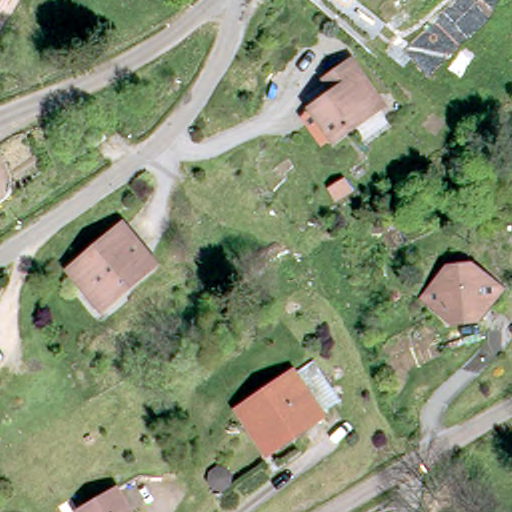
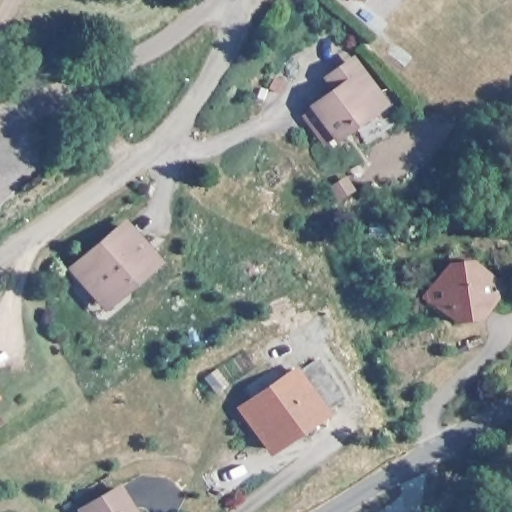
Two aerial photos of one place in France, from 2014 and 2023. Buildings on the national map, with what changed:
unchanged [(381,100),(368,110),(374,119),(340,142),(322,115),(344,100),(335,86),(346,77),(358,70),(381,100)]
unchanged [(95,135),(101,145),(89,152),(83,142),(95,135)]
unchanged [(83,281),(78,274),(129,234),(157,269),(115,301),(105,308),(83,281)]
unchanged [(455,332),(434,308),(436,306),(456,280),(455,265),(475,263),(476,278),(508,300),(497,315),(488,327),(455,332)]
unchanged [(261,457),(234,417),(285,382),(285,381),(306,367),(327,398),(333,407),(327,411),(313,421),(261,457)]
unchanged [(212,471),(217,472),(221,475),(225,478),(226,482),(226,487),(224,491),(221,495),(216,497),(212,498),(207,497),(203,495),(200,491),(198,487),(198,482),(200,477),(203,474),(208,472),(208,471),(212,471)]
unchanged [(89,512),(124,492),(135,512),(89,512)]

